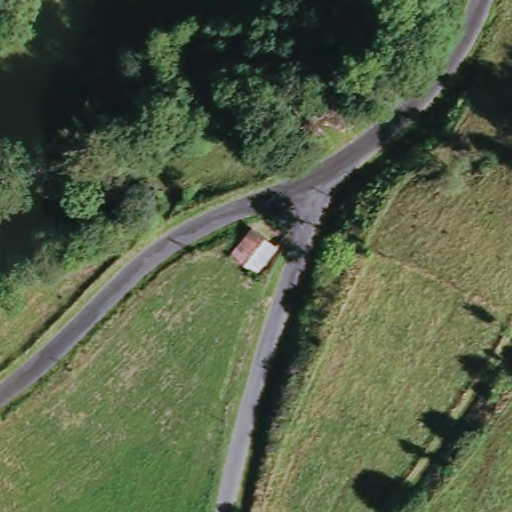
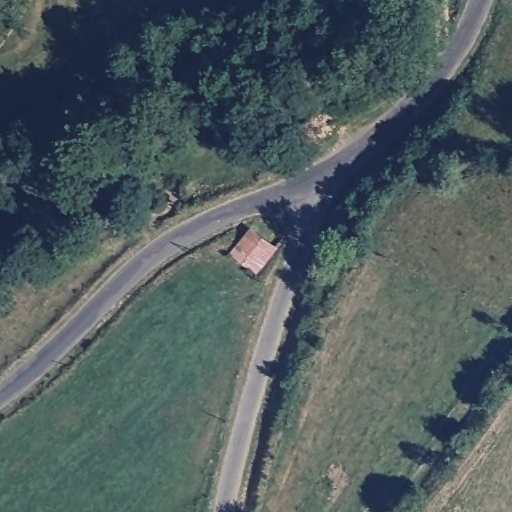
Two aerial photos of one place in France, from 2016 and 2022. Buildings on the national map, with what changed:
unchanged [(277,255),(254,279),(233,259),(254,234),(277,255)]

